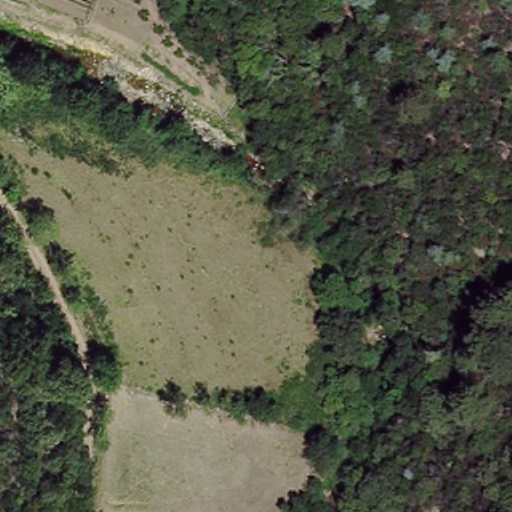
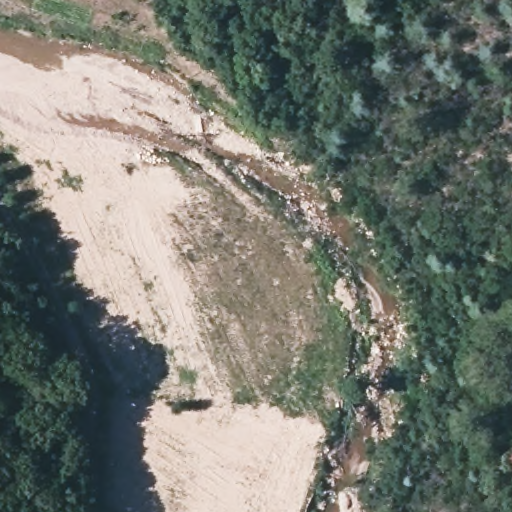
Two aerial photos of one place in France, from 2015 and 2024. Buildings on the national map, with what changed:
unchanged [(81,396),(82,408),(53,409),(49,380),(78,378),(81,396)]

